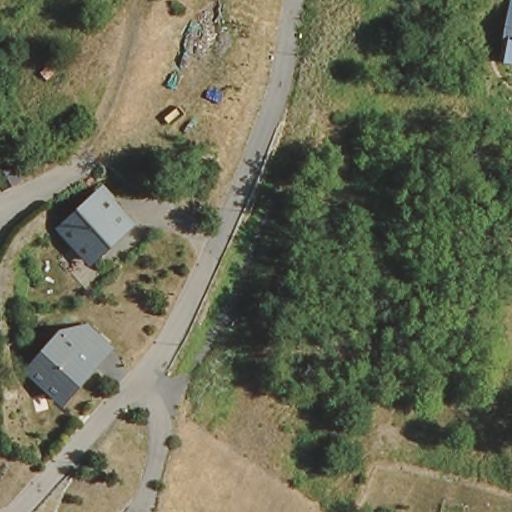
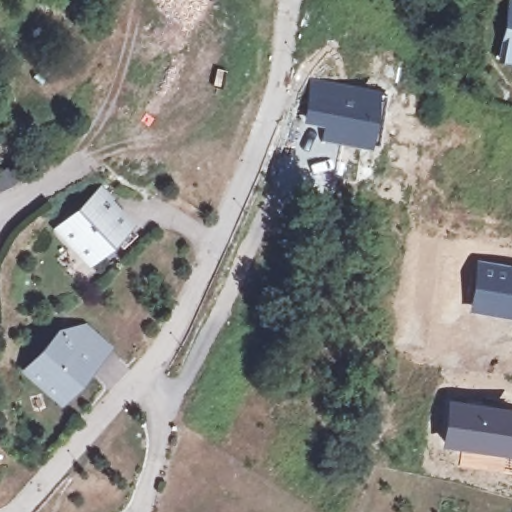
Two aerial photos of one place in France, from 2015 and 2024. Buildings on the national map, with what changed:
unchanged [(512,2),(512,58),(499,54),(512,2)]
new [(309,77),(380,88),(370,147),(320,141),(321,127),(303,124),(309,77)]
unchanged [(102,194),(131,227),(88,263),(60,231),(102,194)]
new [(512,266),(512,319),(470,313),(477,260),(512,266)]
unchanged [(107,351),(60,402),(27,372),(61,335),(84,330),(107,351)]
new [(512,406),(512,455),(442,447),(447,397),(512,406)]

